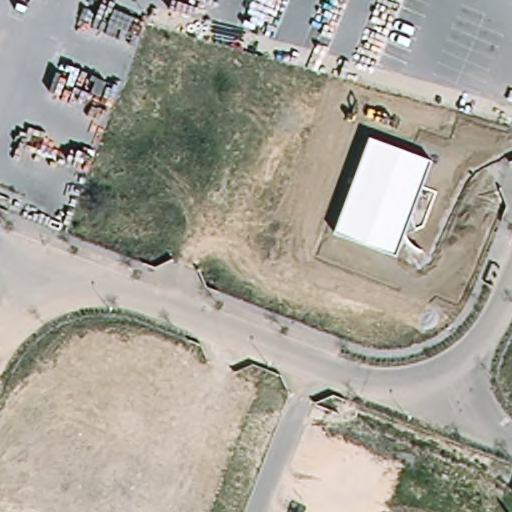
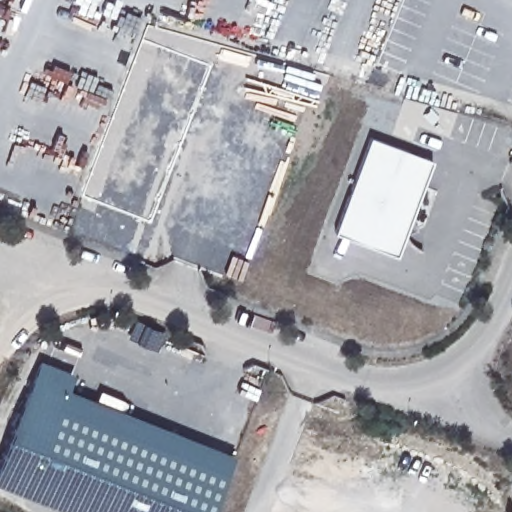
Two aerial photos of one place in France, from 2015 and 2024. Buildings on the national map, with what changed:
unchanged [(373,138),(435,162),(417,213),(421,219),(425,221),(412,226),(401,257),(338,233),(373,138)]
new [(40,360),(73,373),(67,389),(235,454),(211,512),(70,512),(0,485),(0,460),(40,360)]

